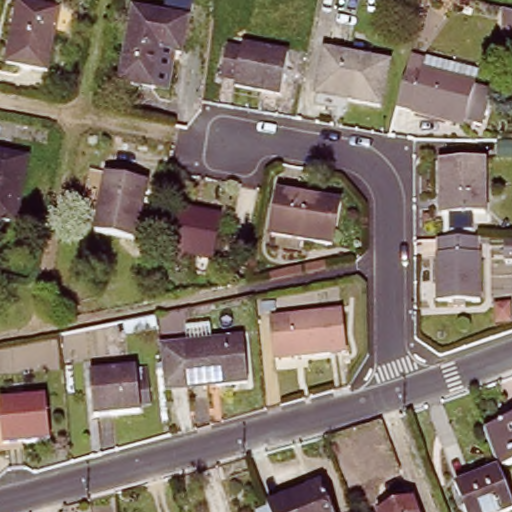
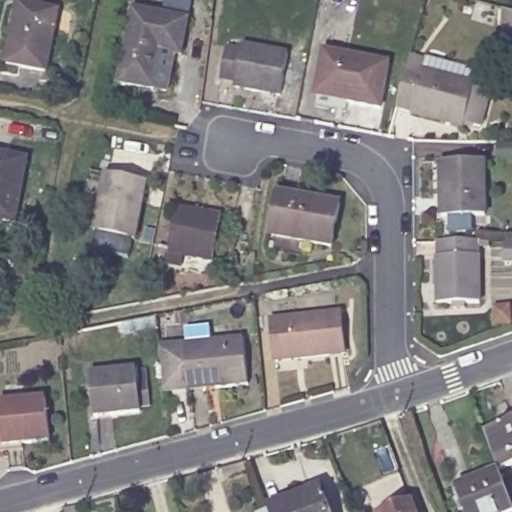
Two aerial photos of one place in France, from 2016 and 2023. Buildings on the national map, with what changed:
unchanged [(3,62),(15,3),(53,10),(42,70),(3,62)]
unchanged [(173,53),(165,90),(120,81),(135,9),(186,20),(180,54),(173,53)]
unchanged [(230,85),(231,80),(216,76),(221,48),(237,50),(238,45),(283,53),(275,94),(230,85)]
unchanged [(343,105),(343,103),(313,97),(320,55),(383,68),(375,111),(343,105)]
unchanged [(485,99),(478,128),(467,125),(467,126),(461,125),(460,131),(391,113),(406,59),(473,77),(468,95),(485,99)]
unchanged [(0,153),(23,157),(10,220),(0,217),(0,153)]
unchanged [(447,216),(447,163),(488,162),(488,215),(447,216)]
unchanged [(91,232),(102,175),(140,183),(130,240),(91,232)]
unchanged [(271,235),(278,193),(340,204),(332,245),(271,235)]
unchanged [(165,254),(174,207),(188,210),(188,212),(216,218),(208,261),(165,254)]
unchanged [(463,302),(463,309),(452,309),(451,302),(438,303),(436,241),(478,240),(478,302),(463,302)]
unchanged [(502,260),(501,241),(512,241),(512,260),(502,260)]
unchanged [(271,360),(268,320),(335,313),(338,353),(271,360)]
unchanged [(211,387),(211,385),(185,387),(180,345),(240,340),(243,384),(211,387)]
unchanged [(90,417),(87,375),(132,370),(136,412),(90,417)]
unchanged [(0,402),(40,398),(44,440),(0,444),(0,402)]
unchanged [(512,422),(512,464),(494,470),(480,434),(512,422)]
unchanged [(460,512),(450,487),(494,470),(510,511),(507,512),(460,512)]
unchanged [(320,490),(329,512),(269,512),(267,509),(320,490)]
unchanged [(411,512),(388,512),(408,505),(411,512)]

